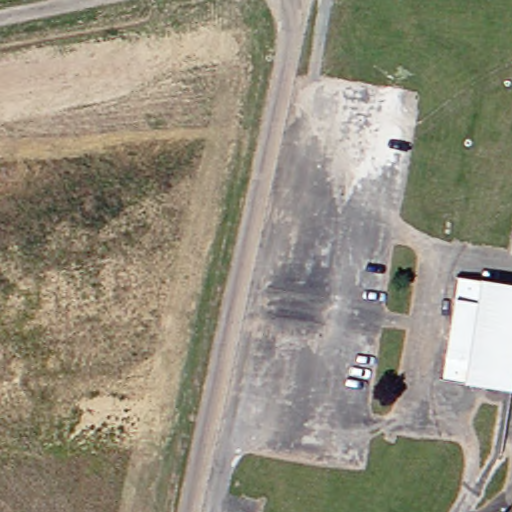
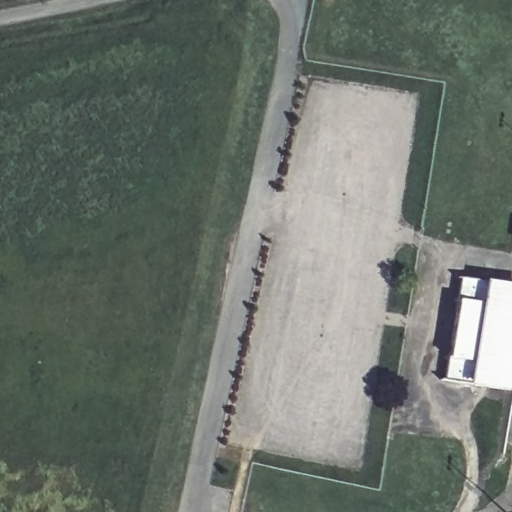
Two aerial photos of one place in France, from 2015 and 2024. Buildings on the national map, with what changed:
unchanged [(502,394),(437,383),(454,278),(512,288),(512,332),(502,394)]

